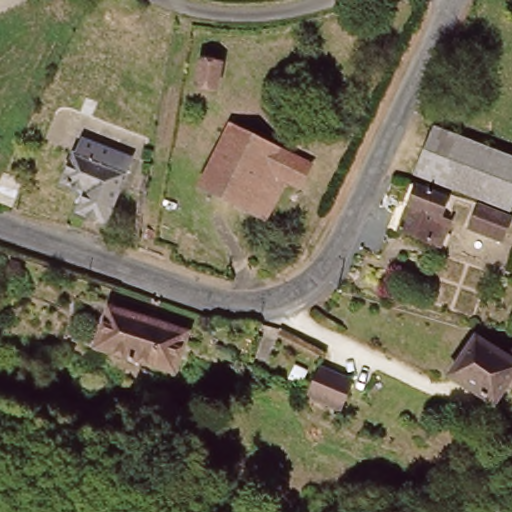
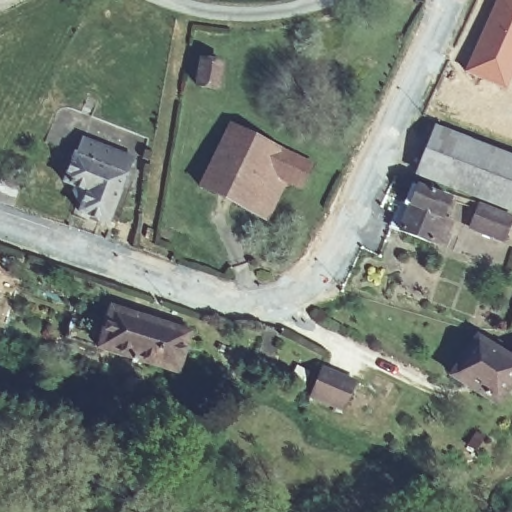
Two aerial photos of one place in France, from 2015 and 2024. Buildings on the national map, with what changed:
new [(512,0),(512,77),(506,90),(463,70),(494,0),(512,0)]
unchanged [(215,75),(210,101),(190,97),(195,71),(215,75)]
unchanged [(306,161),(296,184),(282,177),(263,216),(195,184),(223,122),(306,161)]
unchanged [(508,211),(415,176),(433,130),(512,159),(512,200),(508,211)]
unchanged [(82,193),(58,183),(68,155),(71,156),(76,140),(126,159),(103,225),(75,215),(82,193)]
unchanged [(0,178),(18,186),(5,212),(0,210),(0,178)]
unchanged [(400,231),(408,209),(402,206),(410,187),(447,200),(440,217),(450,220),(440,246),(400,231)]
unchanged [(475,204),(507,215),(512,216),(512,221),(505,240),(468,227),(475,204)]
unchanged [(143,250),(136,247),(140,240),(145,241),(146,241),(143,250)]
unchanged [(185,334),(173,375),(93,350),(106,308),(185,334)]
unchanged [(504,363),(512,351),(512,376),(490,409),(446,380),(471,342),(504,363)]
unchanged [(310,379),(344,390),(335,418),(302,407),(310,379)]

